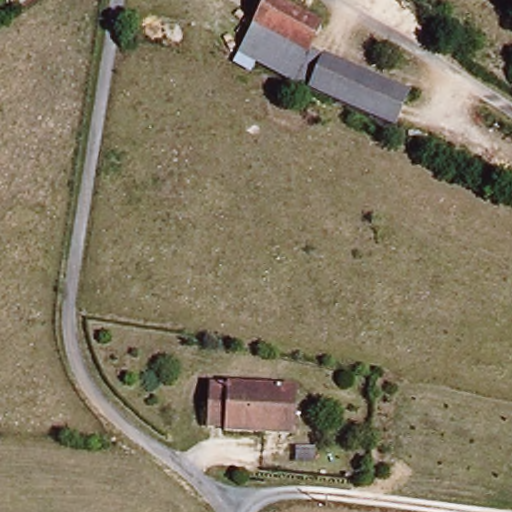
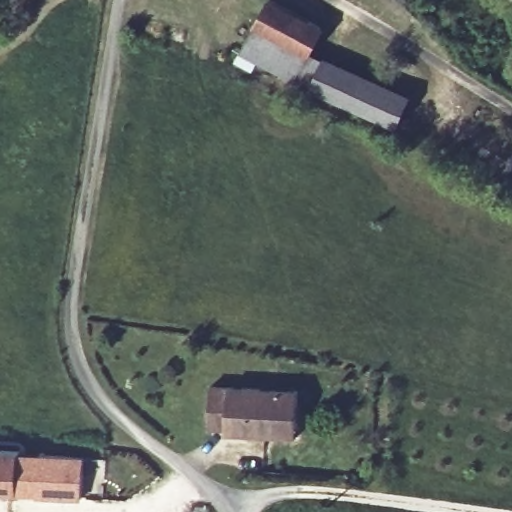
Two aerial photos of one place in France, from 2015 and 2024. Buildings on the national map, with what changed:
unchanged [(413,92),(404,125),(302,85),(247,59),(272,5),(321,32),(312,55),(413,92)]
unchanged [(305,394),(301,434),(212,425),(216,385),(305,394)]
new [(0,494),(0,449),(19,450),(17,495),(0,494)]
new [(39,455),(82,458),(81,498),(36,495),(39,455)]

